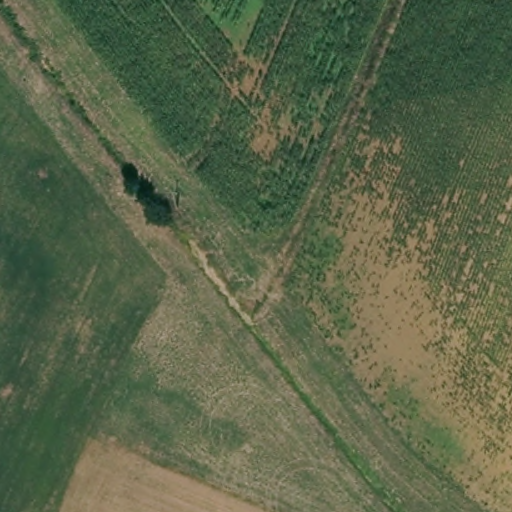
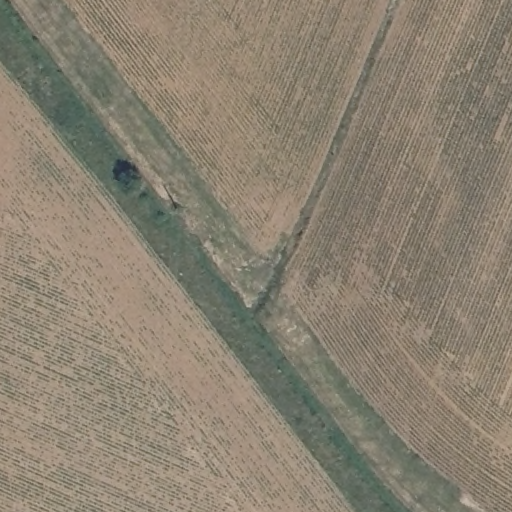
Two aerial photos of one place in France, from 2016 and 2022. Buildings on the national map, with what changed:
[]

